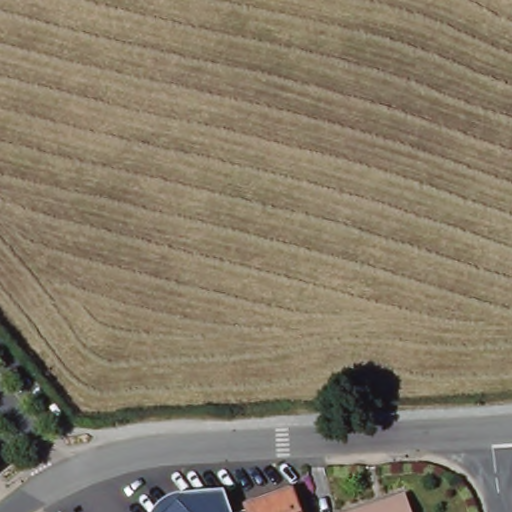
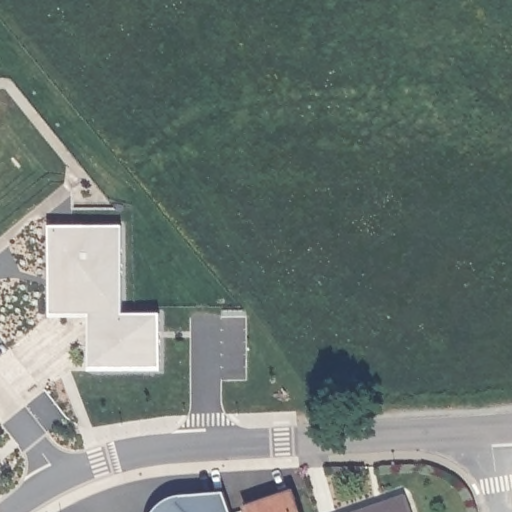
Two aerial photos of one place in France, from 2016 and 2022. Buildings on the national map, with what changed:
new [(160,366),(87,366),(87,313),(49,315),(49,226),(121,225),(122,312),(161,313),(160,366)]
unchanged [(414,512),(358,512),(406,493),(414,512)]
unchanged [(294,494),(300,512),(250,512),(250,509),(294,494)]
unchanged [(167,512),(171,507),(177,512),(167,512)]

